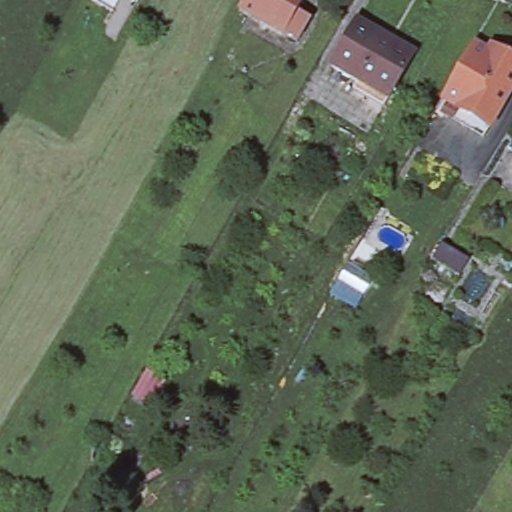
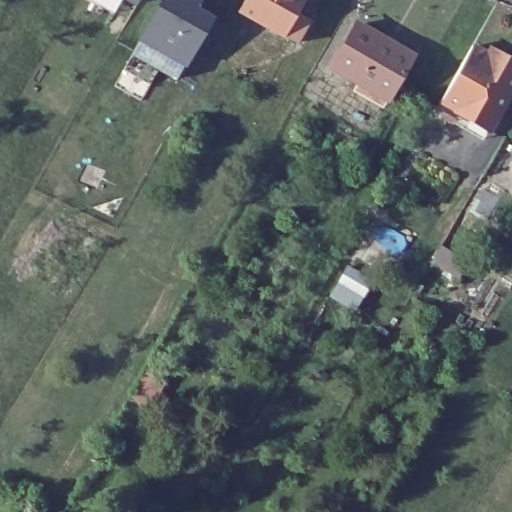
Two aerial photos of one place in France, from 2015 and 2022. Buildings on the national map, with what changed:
new [(198,6),(215,18),(187,67),(184,66),(177,79),(132,55),(140,40),(137,39),(159,0),(201,0),(198,6)]
unchanged [(136,1),(133,0),(137,0),(136,1)]
unchanged [(291,39),(278,32),(277,33),(232,8),(237,0),(296,0),(290,10),(303,17),(291,39)]
unchanged [(368,98),(352,90),(357,82),(345,75),(328,66),(352,24),(369,33),(392,46),(393,43),(414,55),(389,99),(384,107),(368,98)]
unchanged [(512,60),(512,90),(494,122),(487,133),(439,106),(445,95),(477,39),(512,60)]
unchanged [(440,245),(467,261),(459,277),(430,260),(440,245)]
new [(377,277),(357,313),(328,296),(346,261),(377,277)]

